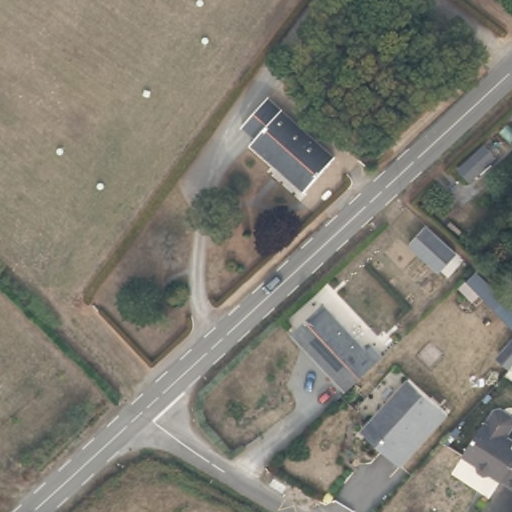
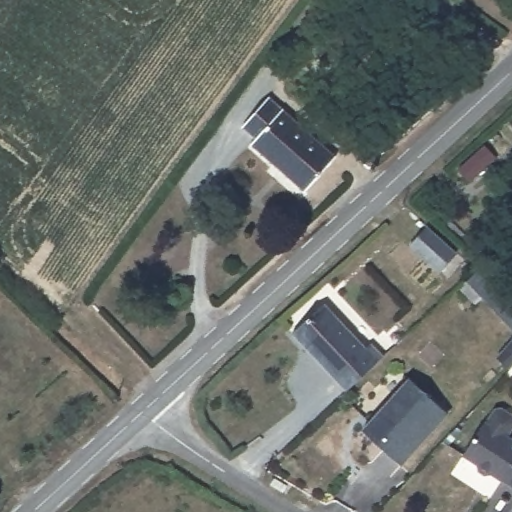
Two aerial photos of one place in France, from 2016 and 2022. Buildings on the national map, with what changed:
unchanged [(309,189),(248,147),(252,140),(238,130),(262,99),(334,150),(309,189)]
unchanged [(458,174),(484,148),(495,160),(469,185),(458,174)]
unchanged [(413,242),(424,229),(428,223),(452,242),(461,249),(456,255),(445,268),(413,242)]
unchanged [(372,345),(381,355),(347,387),(294,331),(321,306),(365,350),(372,345)]
unchanged [(408,460),(369,428),(414,375),(455,406),(408,460)]
unchanged [(488,473),(486,476),(473,467),(476,462),(462,453),(484,420),(512,440),(512,490),(488,473)]

